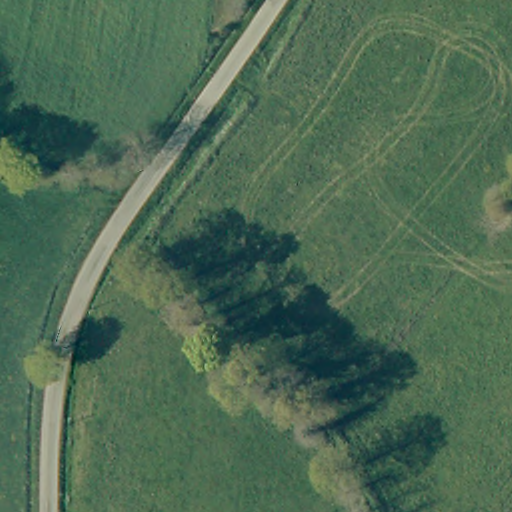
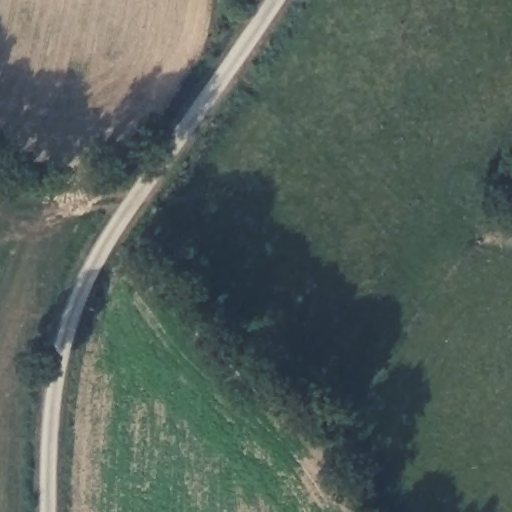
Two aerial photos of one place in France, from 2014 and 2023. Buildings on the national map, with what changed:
[]

